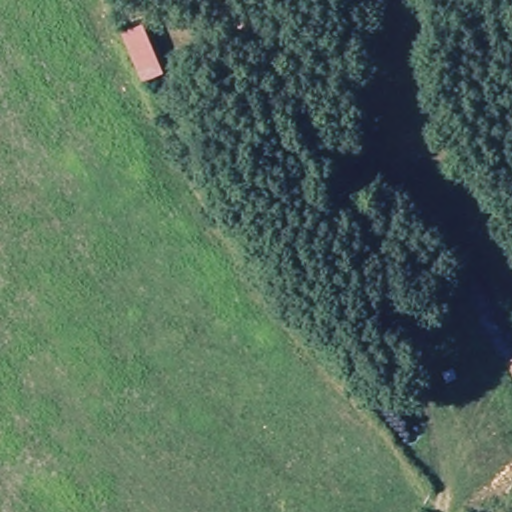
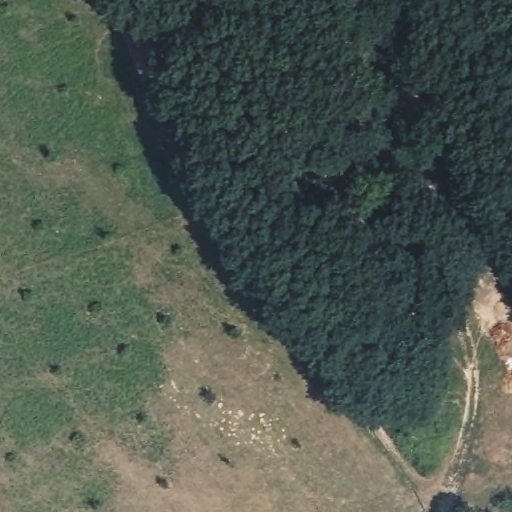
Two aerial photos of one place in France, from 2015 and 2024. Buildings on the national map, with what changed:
unchanged [(121,36),(142,26),(164,74),(142,84),(121,36)]

